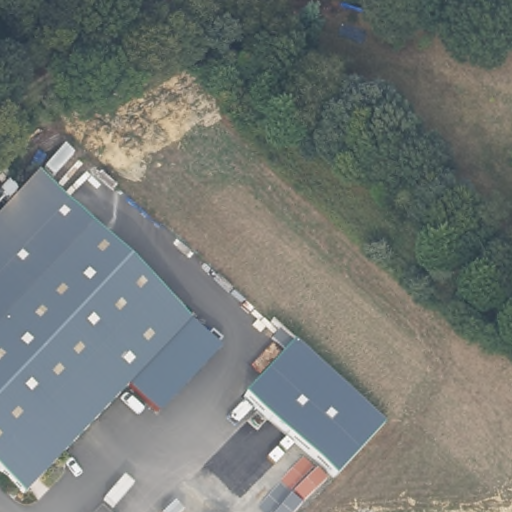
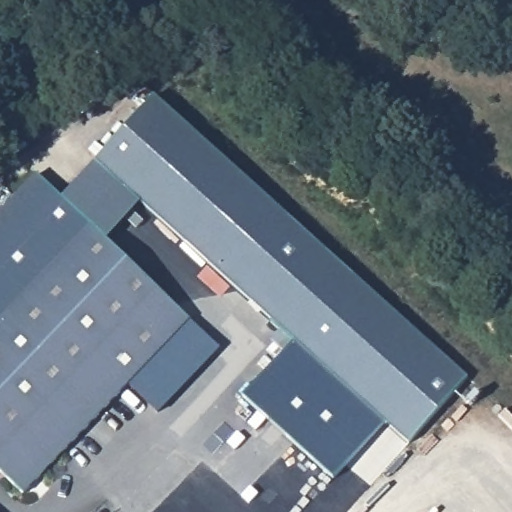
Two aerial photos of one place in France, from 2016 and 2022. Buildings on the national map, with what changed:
new [(154,95),(468,376),(409,441),(382,420),(295,342),(140,201),(106,240),(91,226),(62,198),(154,95)]
unchanged [(91,226),(0,323),(0,213),(37,174),(91,226)]
unchanged [(23,494),(0,472),(0,323),(91,226),(189,319),(23,494)]
unchanged [(189,319),(219,348),(158,411),(127,384),(189,319)]
unchanged [(382,420),(337,481),(242,397),(295,342),(382,420)]

